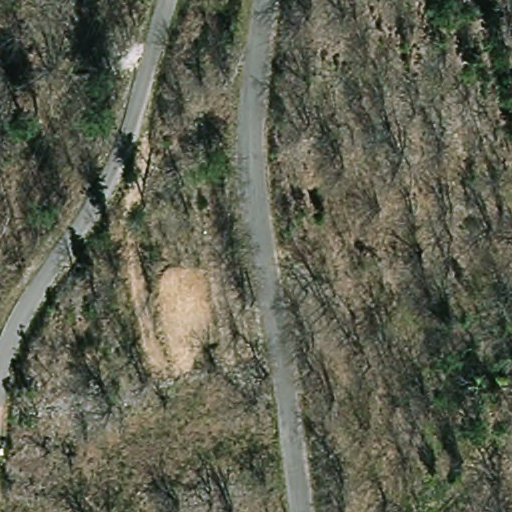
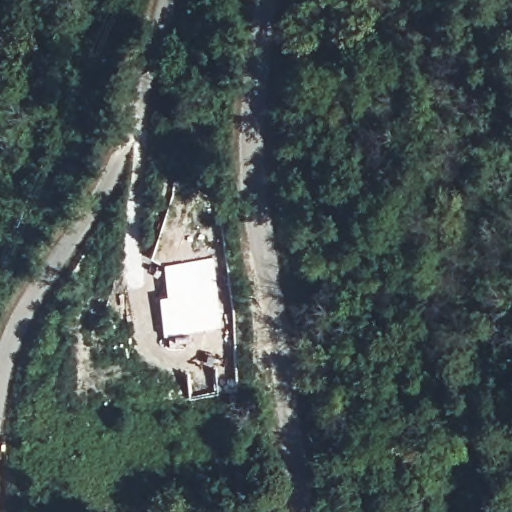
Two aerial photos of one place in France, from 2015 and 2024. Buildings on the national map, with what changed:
new [(222,331),(165,337),(160,300),(168,299),(164,267),(215,261),(222,331)]
unchanged [(248,302),(246,290),(259,287),(261,300),(253,301),(248,302)]

